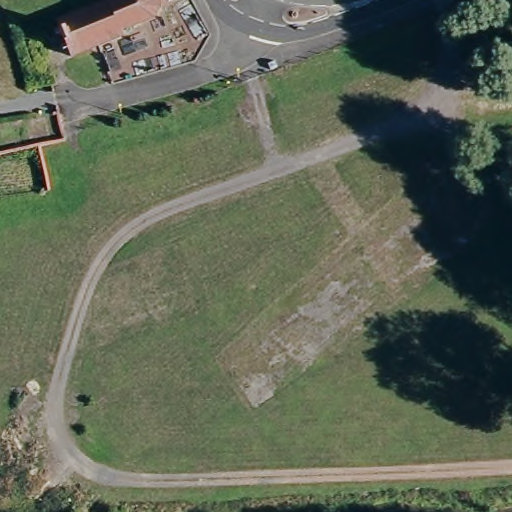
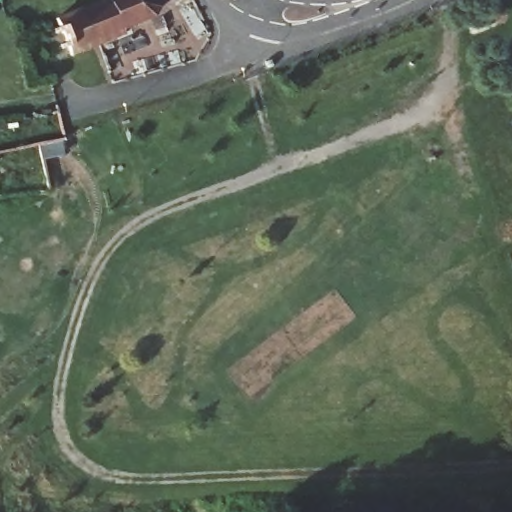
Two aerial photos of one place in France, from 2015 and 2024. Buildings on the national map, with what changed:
unchanged [(93,0),(158,0),(157,0),(157,3),(152,11),(121,24),(123,30),(97,40),(68,52),(66,46),(62,47),(60,42),(64,40),(60,29),(56,30),(54,24),(57,23),(55,15),(93,0)]

